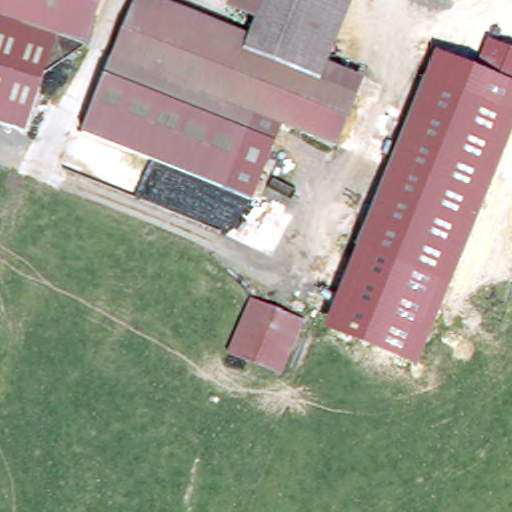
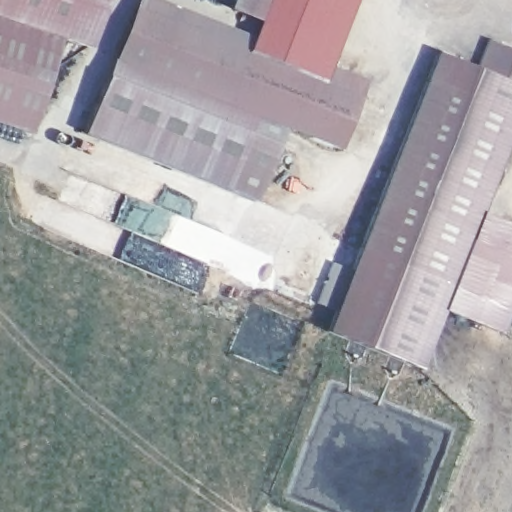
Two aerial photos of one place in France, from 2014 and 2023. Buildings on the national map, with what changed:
unchanged [(0,19),(0,0),(86,0),(72,43),(44,33),(2,19),(0,19)]
unchanged [(104,0),(89,47),(72,43),(86,0),(104,0)]
unchanged [(356,95),(336,144),(284,123),(234,103),(227,100),(225,99),(154,70),(113,53),(133,4),(135,0),(163,0),(174,4),(249,35),(246,45),(244,49),(245,50),(356,95)]
unchanged [(257,17),(256,16),(231,6),(234,0),(263,0),(262,2),(257,17)]
unchanged [(249,35),(250,34),(257,17),(262,2),(263,0),(330,0),(302,68),(246,45),(249,35)]
unchanged [(302,68),(330,0),(351,0),(321,75),(302,68)]
unchanged [(44,33),(12,128),(0,125),(0,19),(2,19),(44,33)]
unchanged [(436,50),(477,68),(489,40),(512,50),(512,112),(425,78),(436,50)]
unchanged [(154,72),(227,102),(233,104),(252,112),(222,186),(202,178),(131,149),(82,129),(112,55),(154,72)]
unchanged [(425,78),(512,112),(512,123),(450,282),(361,248),(425,78)]
unchanged [(252,112),(284,123),(252,198),(222,186),(252,112)]
new [(512,223),(512,299),(499,332),(440,308),(450,282),(478,210),(512,223)]
unchanged [(450,282),(417,369),(324,329),(361,248),(450,282)]
unchanged [(282,312),(302,320),(279,374),(260,366),(226,351),(249,298),(282,312)]

